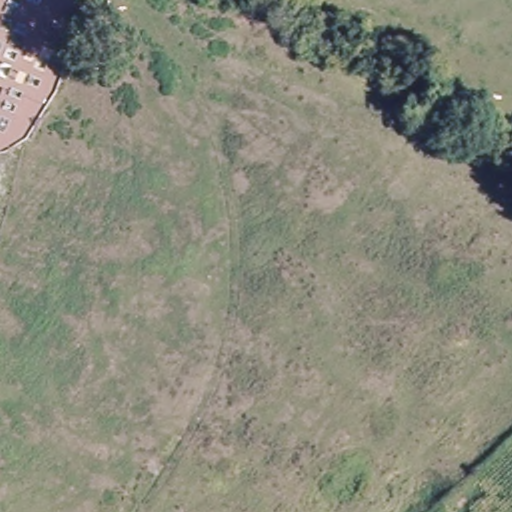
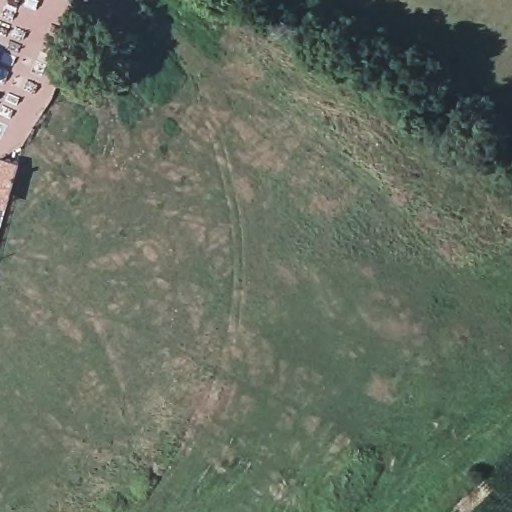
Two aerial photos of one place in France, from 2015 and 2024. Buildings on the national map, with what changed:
new [(0,206),(0,159),(18,164),(6,208),(0,206)]

